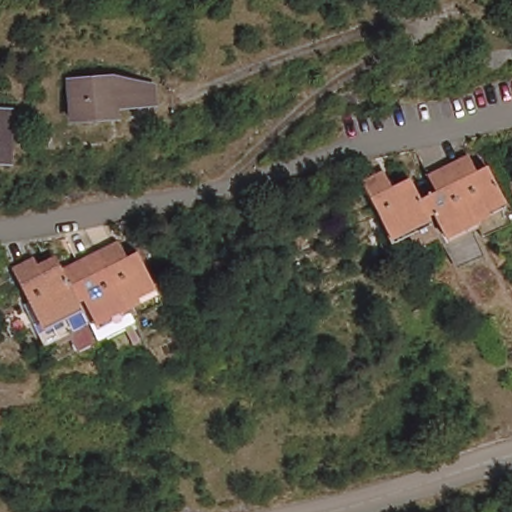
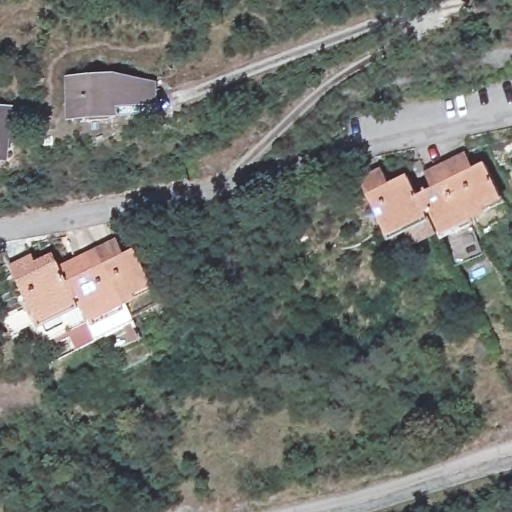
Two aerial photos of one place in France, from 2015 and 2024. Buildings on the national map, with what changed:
unchanged [(118,76),(152,84),(154,105),(115,109),(116,119),(73,122),(70,81),(118,76)]
unchanged [(9,151),(0,151),(0,111),(8,112),(9,151)]
unchanged [(385,226),(360,161),(381,153),(386,169),(405,162),(417,192),(425,213),(385,226)]
unchanged [(446,162),(466,156),(475,174),(487,170),(501,210),(485,215),(488,225),(475,230),(446,162)]
unchanged [(417,192),(432,187),(425,169),(446,162),(475,230),(445,240),(434,210),(425,213),(417,192)]
unchanged [(107,242),(126,237),(130,248),(141,244),(151,277),(132,283),(133,290),(121,293),(107,242)]
unchanged [(45,239),(48,255),(67,249),(69,254),(83,306),(83,307),(41,321),(40,316),(30,319),(22,287),(31,284),(21,246),(45,239)]
unchanged [(107,242),(121,293),(128,314),(90,326),(83,307),(83,306),(69,254),(107,242)]

